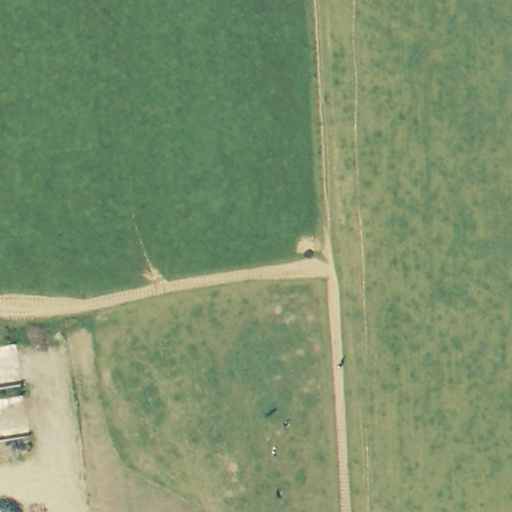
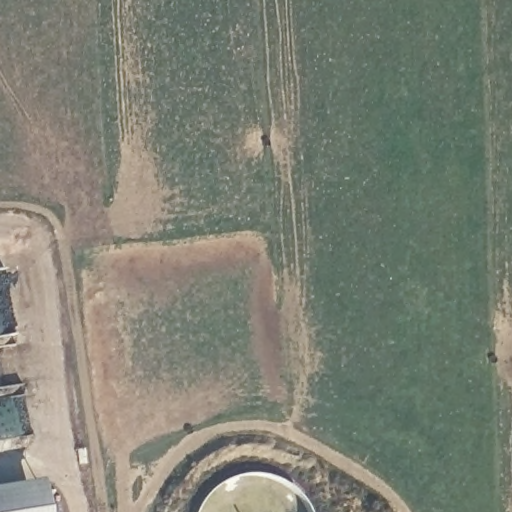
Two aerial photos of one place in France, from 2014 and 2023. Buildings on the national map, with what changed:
new [(48,512),(0,512),(0,486),(42,479),(48,512)]

